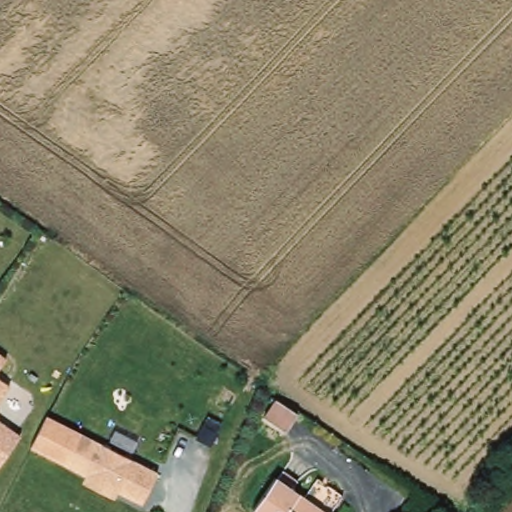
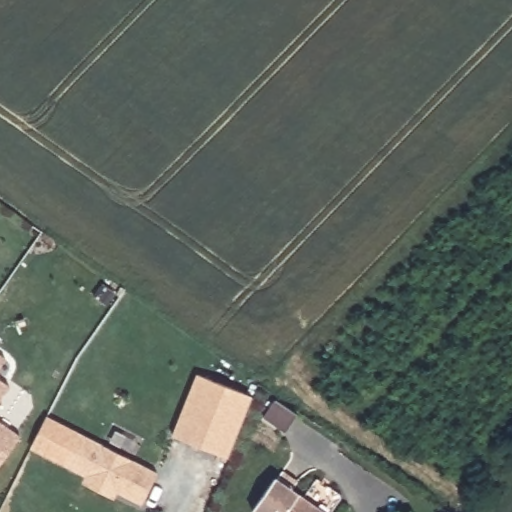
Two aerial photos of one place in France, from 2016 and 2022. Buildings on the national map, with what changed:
unchanged [(0,364),(0,355),(5,359),(0,364)]
new [(197,375),(252,395),(228,457),(173,436),(197,375)]
unchanged [(8,386),(0,399),(0,379),(8,386)]
unchanged [(161,472),(144,506),(120,493),(115,498),(85,481),(88,476),(33,448),(50,416),(161,472)]
unchanged [(20,435),(0,464),(0,423),(20,435)]
unchanged [(325,512),(254,512),(253,512),(275,479),(325,512)]

